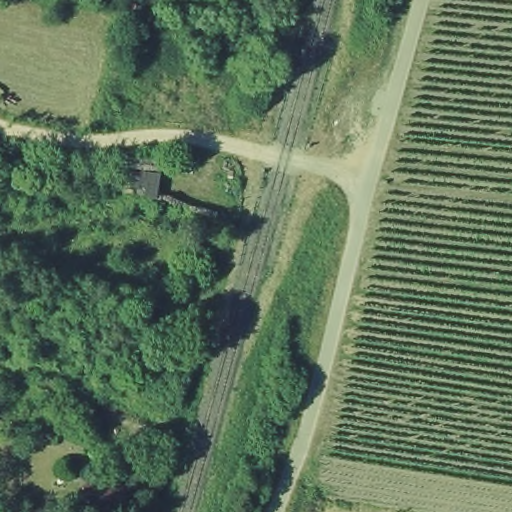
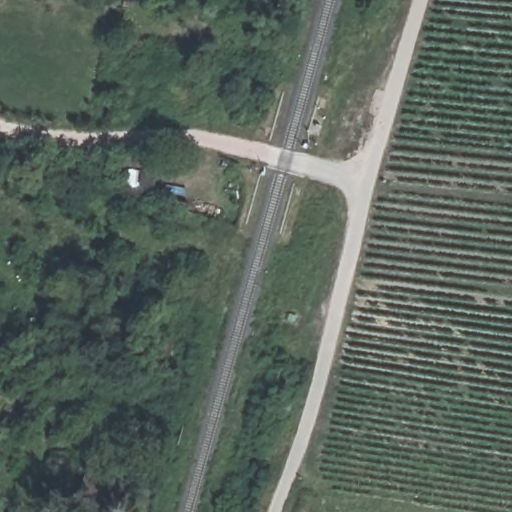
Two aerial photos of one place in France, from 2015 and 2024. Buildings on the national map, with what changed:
unchanged [(69,0),(73,0),(73,1),(69,0)]
unchanged [(122,512),(89,512),(81,490),(87,472),(121,476),(122,512)]

